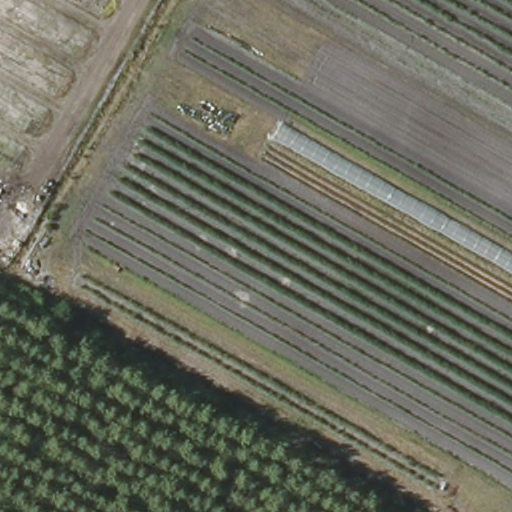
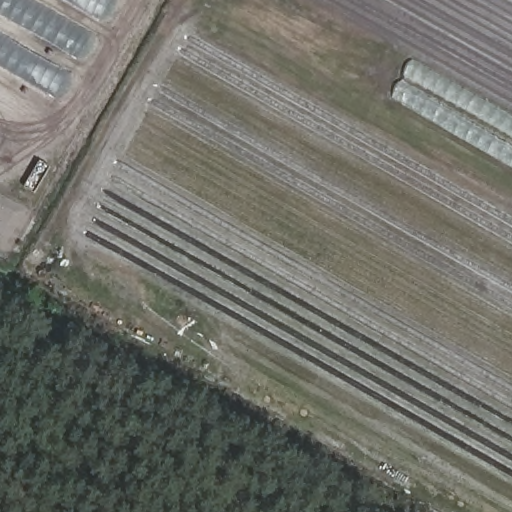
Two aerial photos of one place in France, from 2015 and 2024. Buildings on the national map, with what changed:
demolished [(108,0),(31,135),(0,117),(0,0),(108,0)]
demolished [(512,2),(512,56),(507,53),(512,2)]
new [(412,61),(512,116),(512,165),(390,98),(412,61)]

